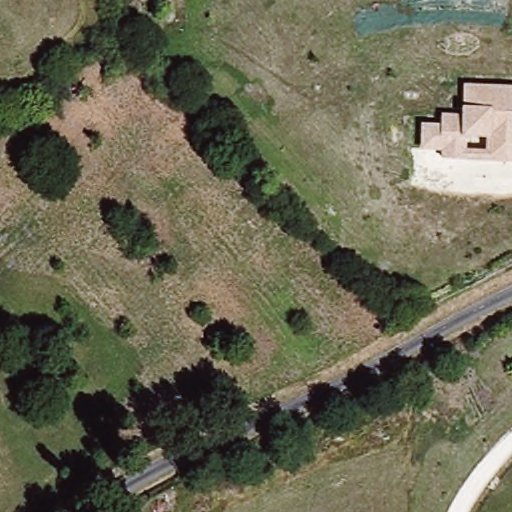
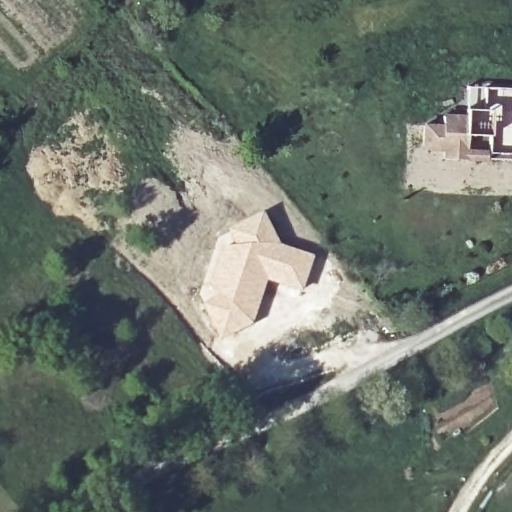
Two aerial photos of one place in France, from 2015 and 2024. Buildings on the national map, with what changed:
unchanged [(512,162),(442,160),(441,150),(421,149),(422,123),(443,124),(443,113),(465,114),(464,85),(512,86),(512,162)]
new [(219,236),(264,211),(282,245),(316,256),(304,292),(268,281),(253,323),(220,340),(203,301),(201,293),(219,236)]

